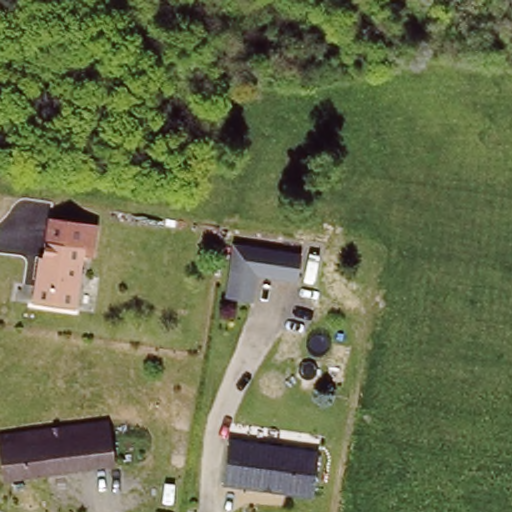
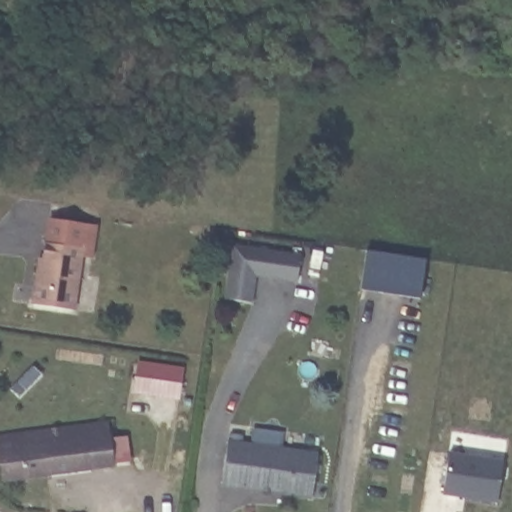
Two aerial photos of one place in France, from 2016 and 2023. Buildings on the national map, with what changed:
unchanged [(83,257),(85,245),(49,239),(52,215),(99,225),(92,258),(83,257)]
unchanged [(36,281),(41,252),(47,254),(49,239),(85,245),(76,305),(34,298),(36,281)]
unchanged [(298,252),(296,279),(254,275),(252,302),(225,300),(230,246),(298,252)]
new [(367,249),(427,257),(422,296),(362,288),(367,249)]
unchanged [(112,466),(0,477),(0,431),(107,420),(112,466)]
unchanged [(226,438),(317,452),(311,497),(219,484),(226,438)]
new [(494,504),(440,496),(446,453),(502,460),(494,504)]

